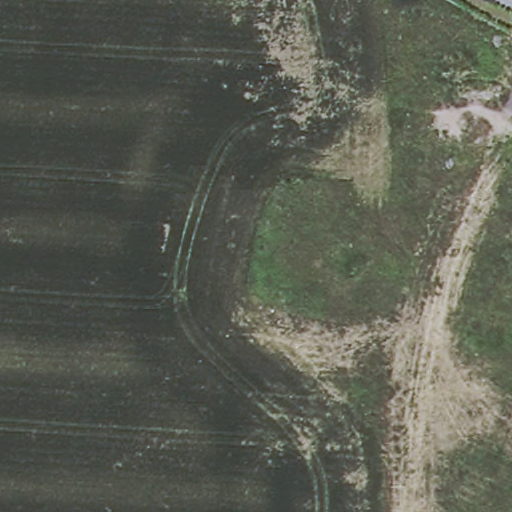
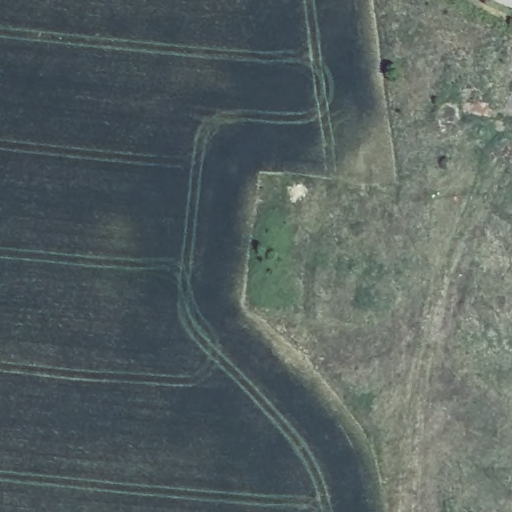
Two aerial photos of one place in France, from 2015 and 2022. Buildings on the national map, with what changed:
unchanged [(493,1),(492,0),(494,0),(493,1)]

